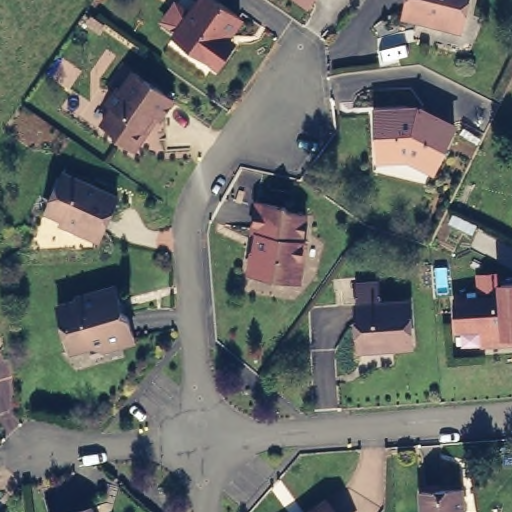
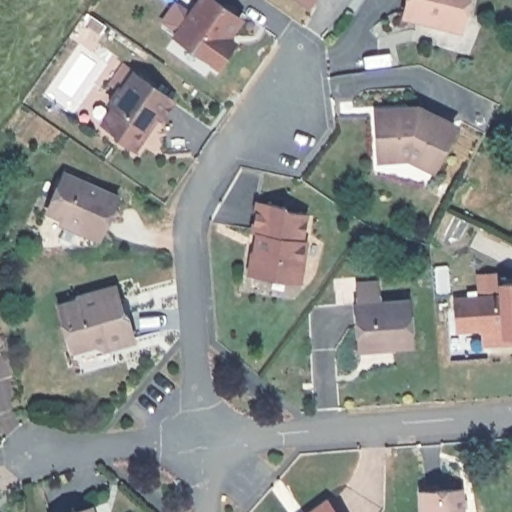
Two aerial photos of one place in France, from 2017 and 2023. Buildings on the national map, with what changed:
unchanged [(213,61),(209,58),(170,30),(192,0),(217,0),(235,13),(222,32),(230,37),(213,61)]
unchanged [(447,32),(405,21),(410,0),(469,0),(464,22),(460,35),(447,32)]
unchanged [(150,122),(154,124),(140,144),(122,132),(124,130),(108,119),(119,102),(114,98),(124,84),(116,78),(129,60),(179,95),(166,113),(159,109),(150,122)]
unchanged [(416,113),(415,109),(425,109),(460,126),(440,168),(407,152),(385,153),(382,115),(416,113)]
unchanged [(62,219),(65,214),(50,207),(67,169),(118,191),(102,230),(99,235),(62,219)]
unchanged [(280,202),(284,207),(302,210),(297,234),(302,235),(295,276),(264,271),(264,268),(245,265),(248,247),(252,245),(255,245),(257,230),(248,228),(252,198),(280,202)]
unchanged [(510,202),(512,203),(512,223),(509,222),(510,202)]
unchanged [(350,345),(347,304),(349,304),(347,283),(369,281),(370,303),(399,300),(402,345),(383,347),(350,350),(350,345)]
unchanged [(512,333),(502,334),(502,341),(479,343),(478,327),(453,328),(451,300),(497,296),(497,284),(512,283),(512,333)]
unchanged [(124,312),(128,315),(135,339),(120,344),(112,338),(72,350),(65,327),(64,327),(58,306),(80,300),(79,297),(116,287),(124,312)]
unchanged [(459,512),(418,512),(417,486),(457,483),(459,512)]
unchanged [(300,512),(322,496),(333,512),(300,512)]
unchanged [(82,512),(66,512),(81,507),(82,512)]
unchanged [(1,512),(0,512),(0,510),(1,512)]

